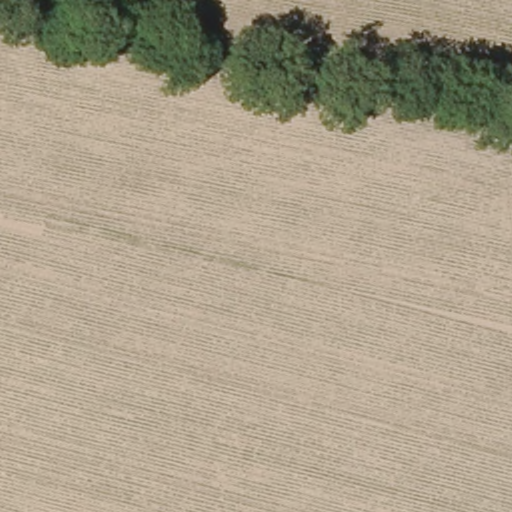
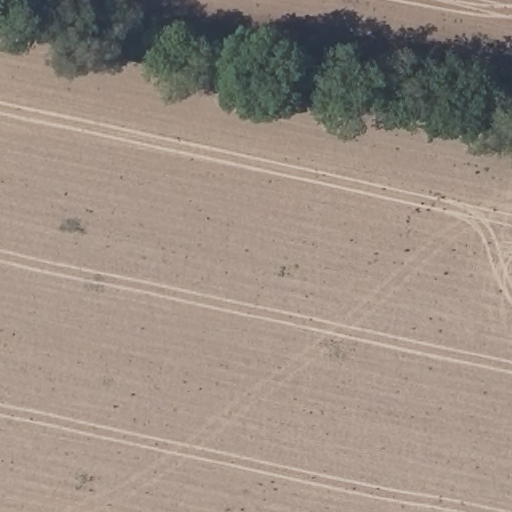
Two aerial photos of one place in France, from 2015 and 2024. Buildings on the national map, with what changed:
[]

